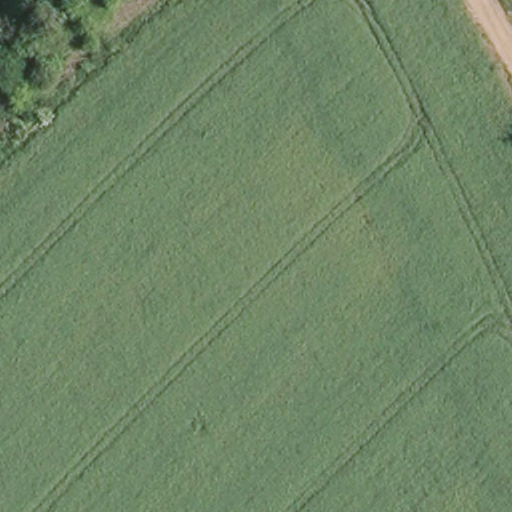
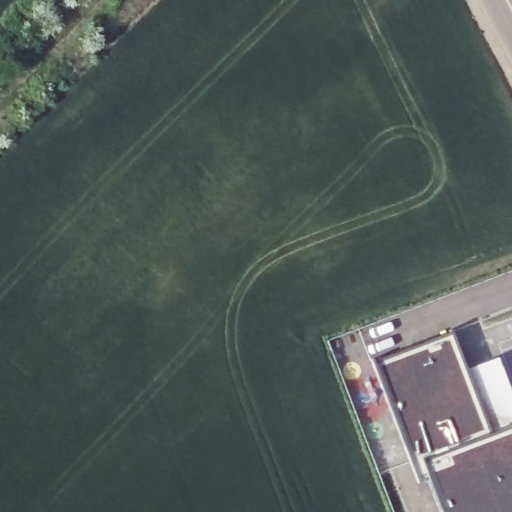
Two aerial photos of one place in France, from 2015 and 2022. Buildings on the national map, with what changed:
new [(499,356),(512,392),(512,512),(441,512),(429,478),(418,482),(374,362),(452,332),(465,370),(499,356)]

